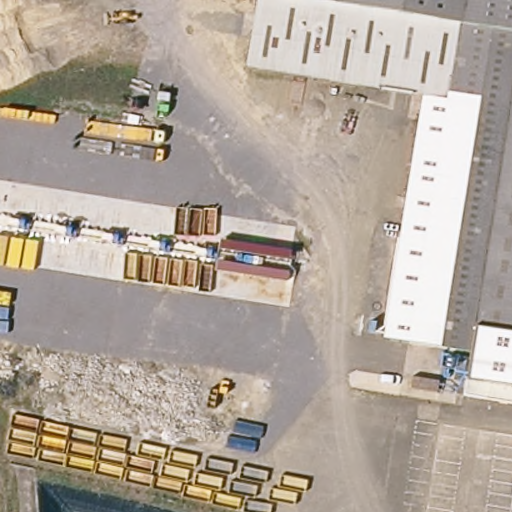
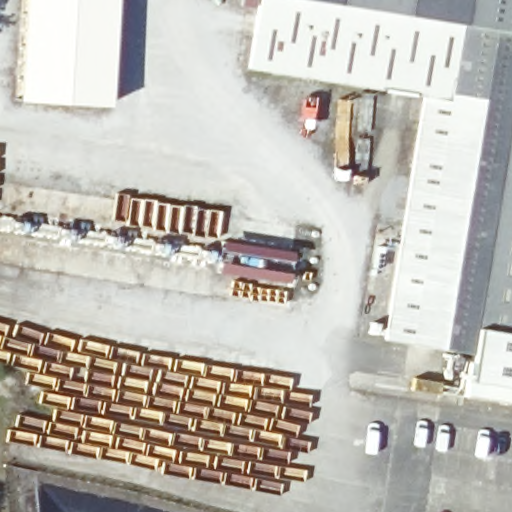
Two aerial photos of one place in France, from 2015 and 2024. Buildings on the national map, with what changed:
new [(14,100),(20,0),(113,0),(106,106),(14,100)]
unchanged [(470,350),(382,336),(386,315),(417,122),(422,91),(247,62),(257,0),(512,0),(512,398),(463,391),(470,350)]
demolished [(169,197),(166,208),(151,205),(153,195),(169,197)]

